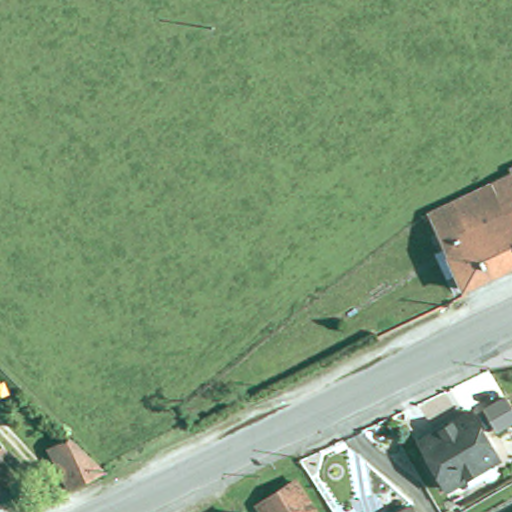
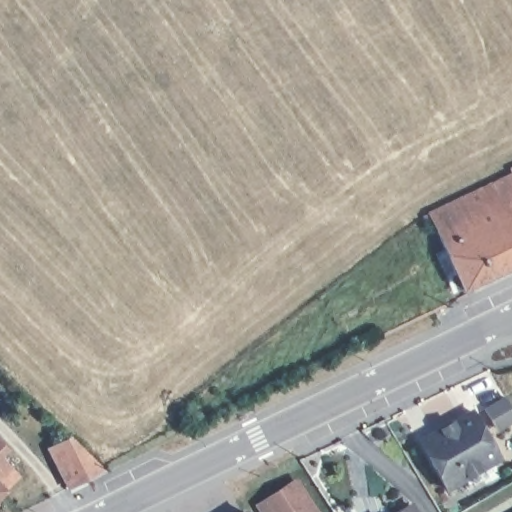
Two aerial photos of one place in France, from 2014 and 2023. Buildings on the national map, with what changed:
unchanged [(496,187),(495,185),(512,177),(512,219),(496,187)]
unchanged [(496,187),(512,219),(512,270),(469,290),(432,215),(495,185),(496,187)]
unchanged [(467,491),(462,482),(446,490),(421,442),(428,438),(436,434),(471,414),(473,417),(498,462),(482,471),(487,480),(467,491)]
unchanged [(6,456),(25,476),(9,490),(0,481),(0,436),(12,450),(6,456)]
unchanged [(108,474),(74,492),(55,453),(76,442),(106,471),(108,474)]
unchanged [(254,502),(261,497),(275,489),(291,478),(313,512),(260,512),(254,502)]
unchanged [(0,481),(9,490),(11,492),(0,502),(0,481)]
unchanged [(420,509),(422,512),(416,512),(420,509)]
unchanged [(243,512),(239,512),(242,510),(243,512)]

